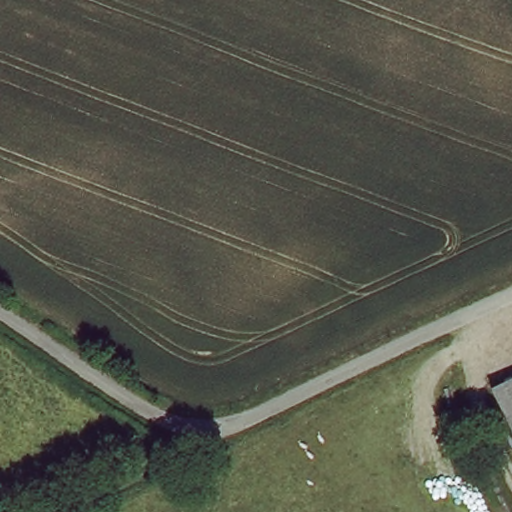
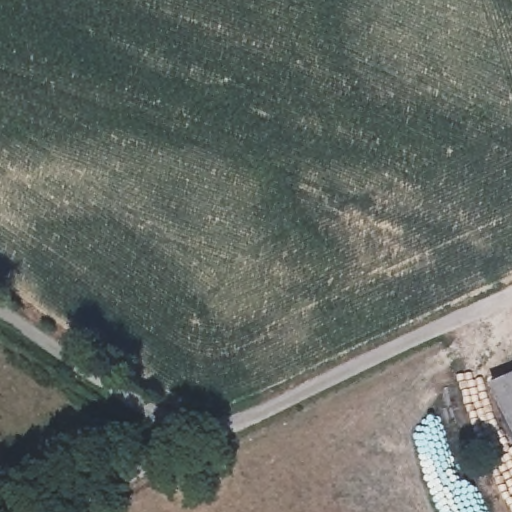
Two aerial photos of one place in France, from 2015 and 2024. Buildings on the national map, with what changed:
unchanged [(512,380),(512,414),(498,386),(512,380)]

